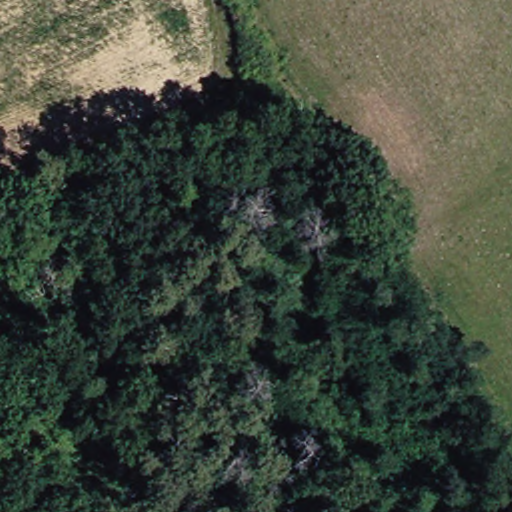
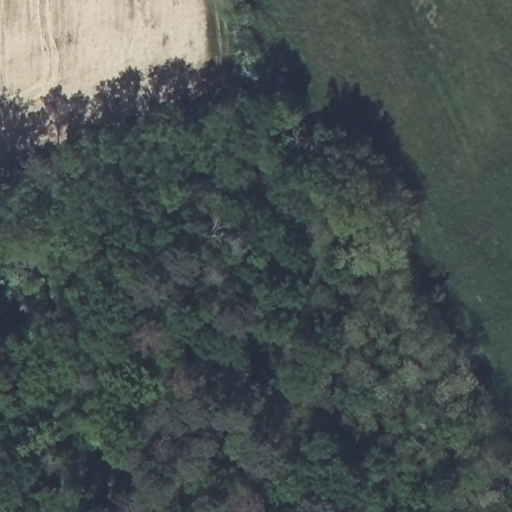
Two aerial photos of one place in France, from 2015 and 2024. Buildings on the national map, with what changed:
[]

